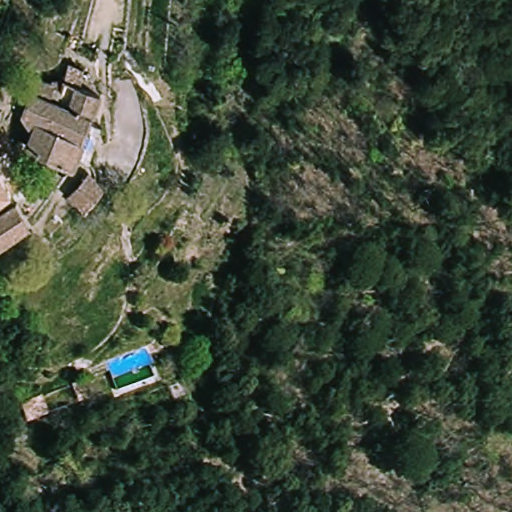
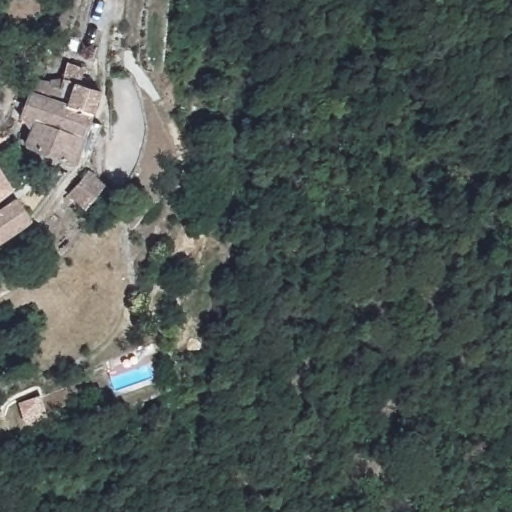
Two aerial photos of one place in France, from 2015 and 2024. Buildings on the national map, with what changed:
unchanged [(35,124),(18,117),(30,90),(37,77),(63,84),(69,59),(85,63),(84,83),(102,90),(94,111),(77,166),(28,148),(35,124)]
unchanged [(10,186),(0,195),(0,170),(10,186)]
unchanged [(105,190),(107,193),(89,211),(78,201),(73,196),(89,174),(105,190)]
unchanged [(14,201),(30,225),(0,247),(0,212),(14,201)]

